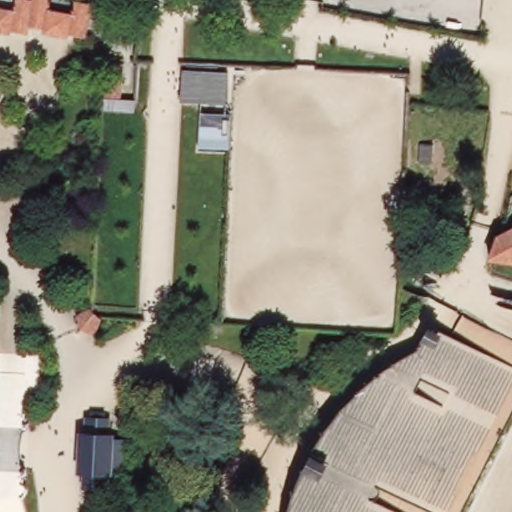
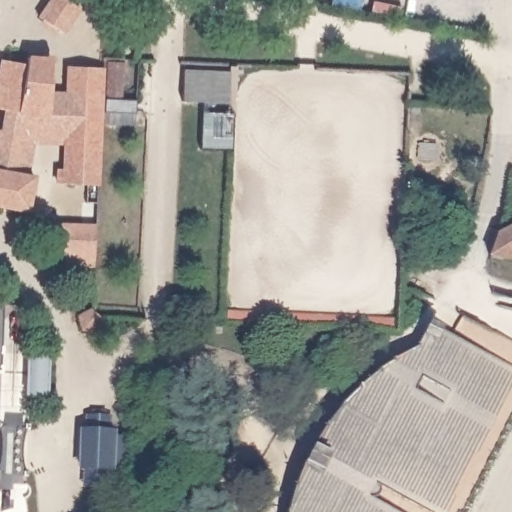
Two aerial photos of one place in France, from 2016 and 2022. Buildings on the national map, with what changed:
demolished [(16,10),(18,0),(33,0),(35,1),(36,0),(53,0),(50,11),(77,16),(80,1),(95,4),(89,37),(74,35),(73,40),(47,36),(48,29),(31,26),(30,34),(13,31),(12,34),(0,31),(0,6),(16,10)]
new [(54,181),(55,169),(60,169),(62,145),(33,142),(26,173),(34,175),(29,210),(0,205),(0,126),(3,109),(0,108),(0,58),(25,62),(26,54),(51,56),(48,90),(63,91),(65,66),(103,67),(98,185),(54,181)]
unchanged [(183,71),(228,72),(227,103),(181,102),(183,71)]
unchanged [(231,114),(230,150),(200,148),(200,113),(231,114)]
new [(49,266),(50,222),(94,222),(92,267),(49,266)]
unchanged [(489,260),(497,237),(512,228),(512,263),(511,263),(489,260)]
unchanged [(410,250),(406,291),(390,291),(394,249),(410,250)]
unchanged [(290,512),(303,468),(325,432),(359,390),(395,362),(410,355),(420,347),(430,330),(512,370),(512,387),(449,512),(290,512)]
unchanged [(41,395),(27,393),(27,429),(18,428),(18,468),(24,468),(26,497),(0,500),(0,413),(3,365),(17,366),(19,352),(44,352),(41,395)]
unchanged [(111,413),(110,428),(115,428),(111,472),(106,472),(105,487),(79,486),(81,468),(76,467),(78,427),(83,427),(84,412),(111,413)]

